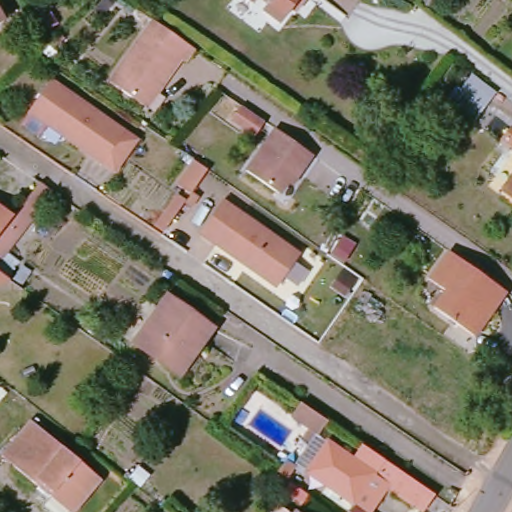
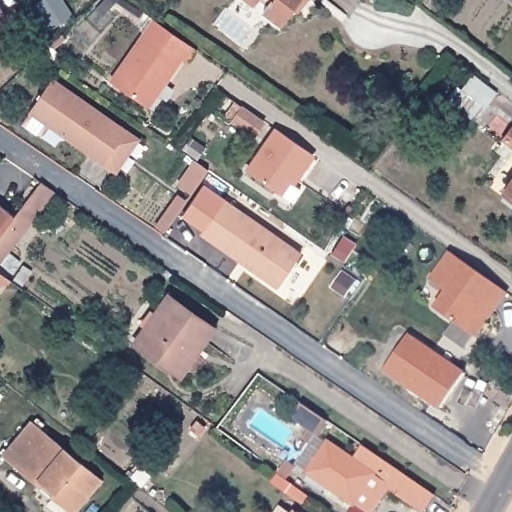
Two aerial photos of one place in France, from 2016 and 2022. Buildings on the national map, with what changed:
unchanged [(243,0),(251,0),(248,4),(243,0)]
unchanged [(272,21),(255,8),(258,4),(253,0),(299,0),(290,12),(282,7),(272,21)]
unchanged [(436,0),(437,0),(430,10),(419,2),(421,0),(436,0)]
unchanged [(0,24),(0,21),(1,24),(0,24)]
unchanged [(148,25),(192,57),(183,70),(178,67),(161,90),(155,85),(143,103),(139,109),(105,85),(109,80),(148,25)]
unchanged [(105,167),(93,159),(76,147),(78,144),(61,130),(57,135),(20,109),(37,83),(42,75),(115,126),(127,135),(105,167)]
unchanged [(462,81),(486,100),(475,113),(452,94),(462,81)]
unchanged [(270,130),(310,158),(291,182),(285,177),(277,188),(272,195),(241,170),(245,165),(270,130)]
unchanged [(193,201),(188,197),(191,194),(178,185),(195,160),(208,170),(195,188),(200,191),(193,201)]
unchanged [(500,196),(495,193),(512,167),(512,204),(500,196)]
unchanged [(38,180),(53,190),(34,214),(0,259),(0,230),(14,212),(20,205),(38,180)]
unchanged [(221,199),(299,255),(294,261),(278,283),(241,257),(239,261),(198,233),(216,206),(221,199)]
unchanged [(169,225),(163,234),(155,228),(175,200),(183,205),(169,225)]
unchanged [(0,203),(14,212),(0,230),(0,203)]
unchanged [(479,338),(436,309),(448,292),(430,280),(450,254),(510,294),(479,338)]
unchanged [(345,270),(358,279),(346,295),(334,286),(345,270)]
unchanged [(170,371),(132,344),(160,305),(166,296),(215,330),(209,339),(201,350),(181,379),(170,371)]
new [(438,408),(383,370),(410,332),(463,371),(438,408)]
unchanged [(87,496),(73,512),(66,512),(0,456),(30,420),(91,473),(100,480),(87,496)]
unchanged [(346,505),(300,472),(323,440),(363,469),(367,463),(349,449),(354,442),(425,491),(415,507),(382,485),(363,512),(357,512),(346,505)]
unchanged [(289,511),(290,512),(288,512),(289,511)]

